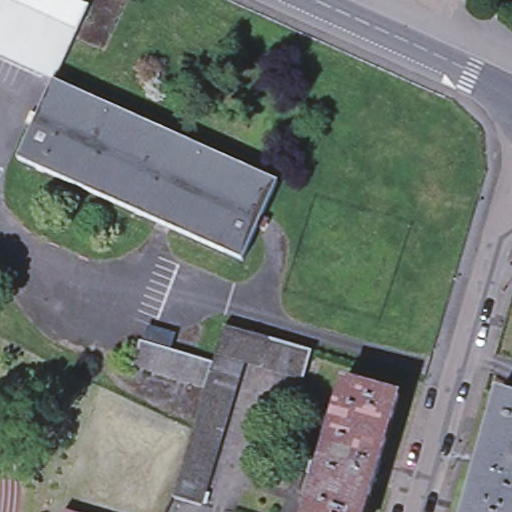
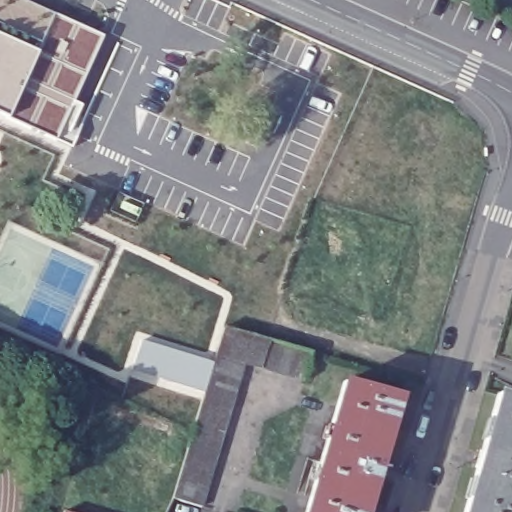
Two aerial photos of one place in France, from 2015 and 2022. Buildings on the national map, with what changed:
new [(22,0),(102,36),(55,140),(0,116),(0,0),(22,0)]
demolished [(74,0),(88,6),(76,33),(4,0),(74,0)]
demolished [(53,83),(277,184),(242,263),(17,160),(52,82),(53,83)]
unchanged [(141,344),(145,324),(175,334),(173,352),(212,364),(204,394),(119,367),(127,339),(141,344)]
unchanged [(302,387),(242,369),(198,512),(180,507),(172,503),(204,394),(212,364),(222,333),(310,357),(302,387)]
unchanged [(344,380),(399,397),(365,512),(305,512),(344,380)]
unchanged [(470,500),(475,481),(474,481),(485,440),(487,440),(492,422),(491,422),(498,394),(512,399),(512,512),(465,512),(468,499),(470,500)]

